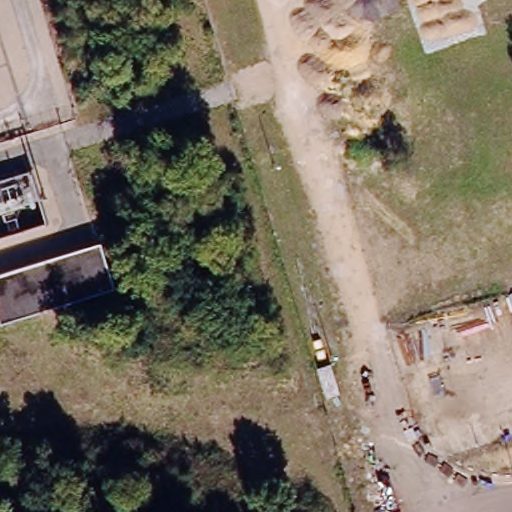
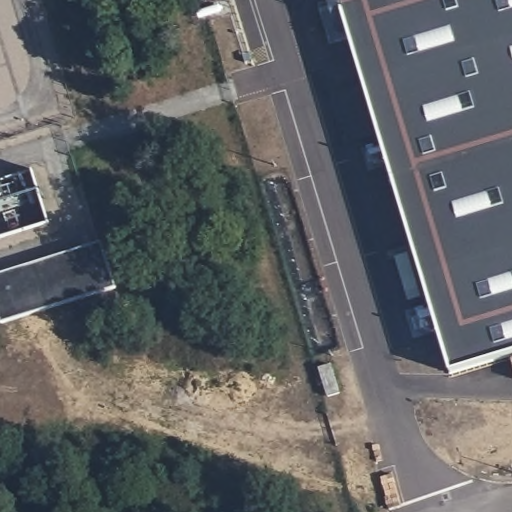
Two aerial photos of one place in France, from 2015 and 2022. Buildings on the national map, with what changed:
new [(338,0),(512,0),(512,353),(451,371),(338,0)]
unchanged [(97,244),(112,289),(0,323),(0,274),(97,244)]
unchanged [(325,398),(317,369),(332,365),(340,394),(325,398)]

